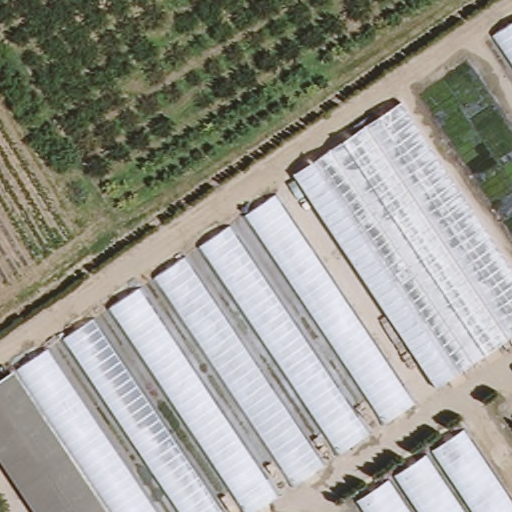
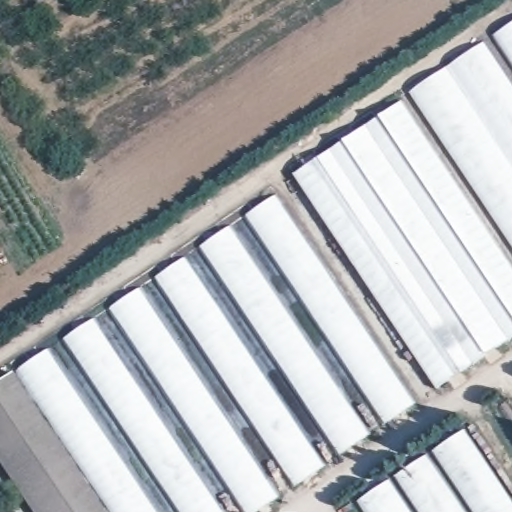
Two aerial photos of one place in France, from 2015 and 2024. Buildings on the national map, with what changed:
unchanged [(492,37),(512,23),(512,68),(492,37)]
new [(410,92),(484,42),(512,84),(512,245),(410,92)]
unchanged [(512,268),(512,337),(435,388),(295,175),(402,103),(512,268)]
unchanged [(414,403),(236,512),(110,512),(22,367),(277,196),(414,403)]
unchanged [(0,460),(0,388),(12,381),(100,512),(36,512),(0,460)]
unchanged [(357,498),(467,428),(512,497),(512,512),(366,512),(357,498)]

